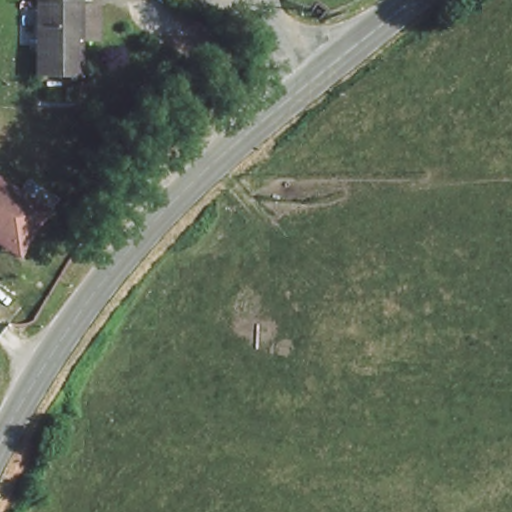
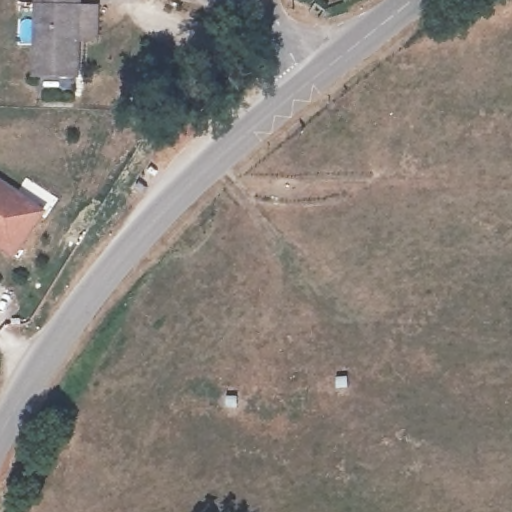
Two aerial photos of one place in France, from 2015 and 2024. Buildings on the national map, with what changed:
unchanged [(82,0),(103,0),(102,43),(81,42),(80,80),(31,75),(34,0),(82,0)]
unchanged [(0,182),(46,210),(23,247),(19,254),(0,242),(0,182)]

